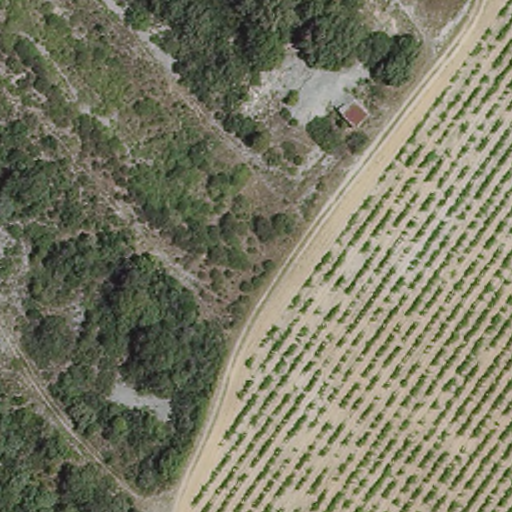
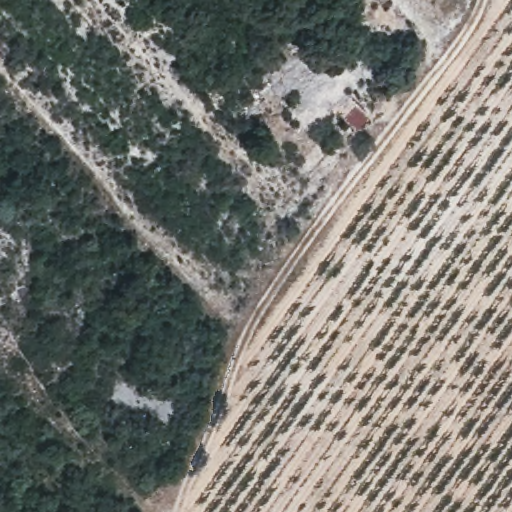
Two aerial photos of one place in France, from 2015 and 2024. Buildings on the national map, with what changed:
unchanged [(369,109),(355,126),(333,105),(348,90),(369,109)]

